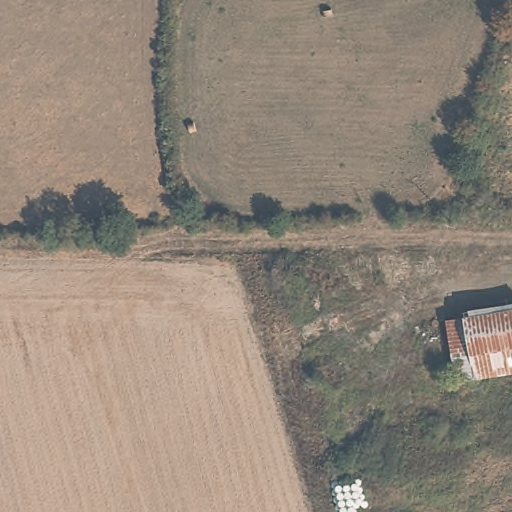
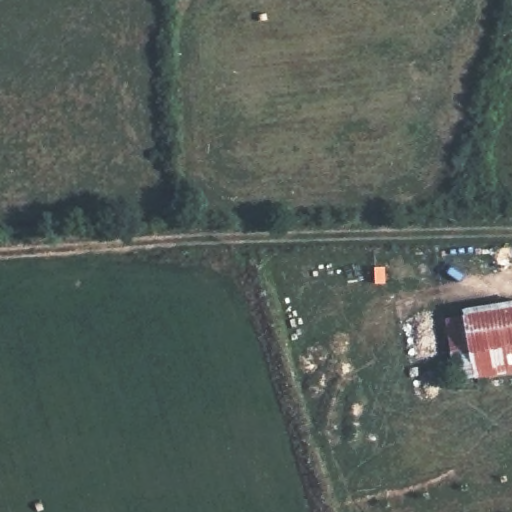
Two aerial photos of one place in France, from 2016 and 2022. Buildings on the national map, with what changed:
unchanged [(442,317),(512,303),(512,371),(452,384),(442,317)]

